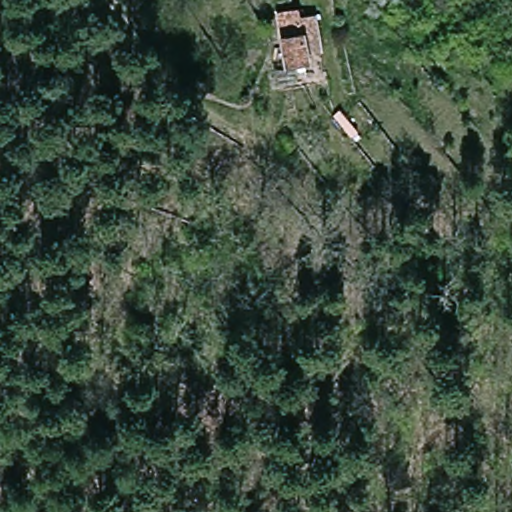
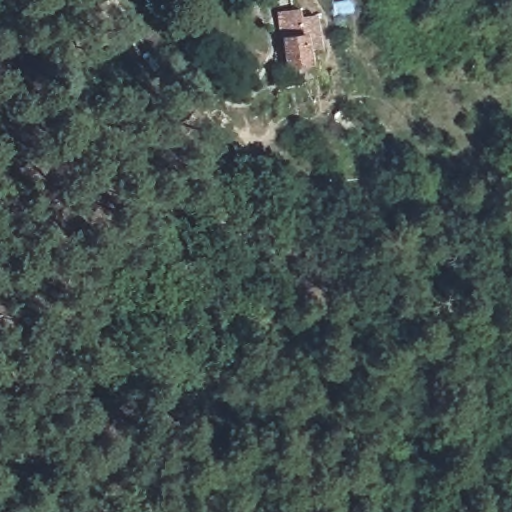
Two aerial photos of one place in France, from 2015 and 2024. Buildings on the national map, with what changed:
unchanged [(282,38),(311,33),(319,69),(286,76),(282,38)]

